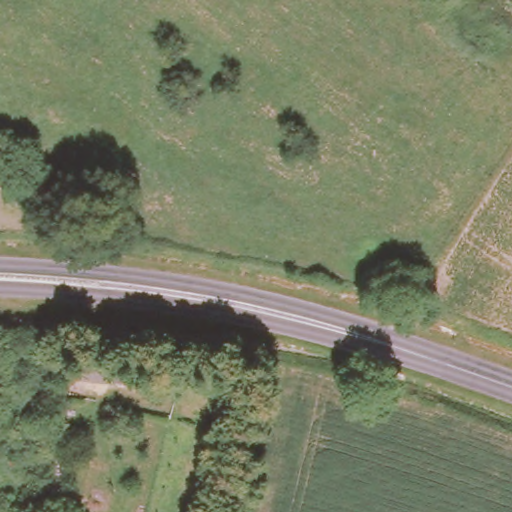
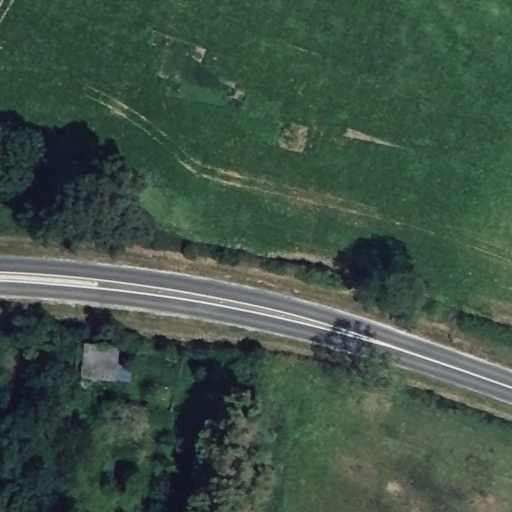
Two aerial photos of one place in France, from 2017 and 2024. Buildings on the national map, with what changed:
unchanged [(126,356),(122,388),(88,384),(91,351),(126,356)]

